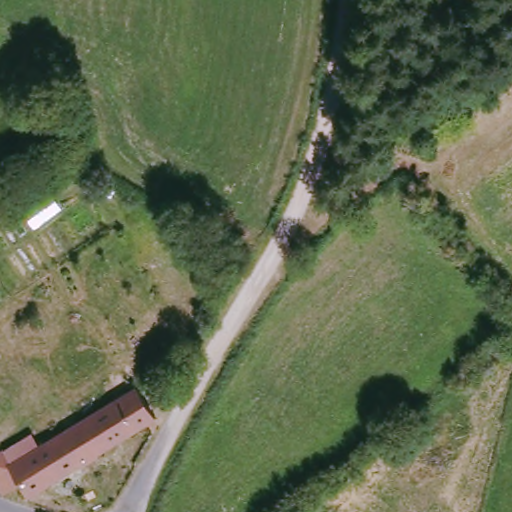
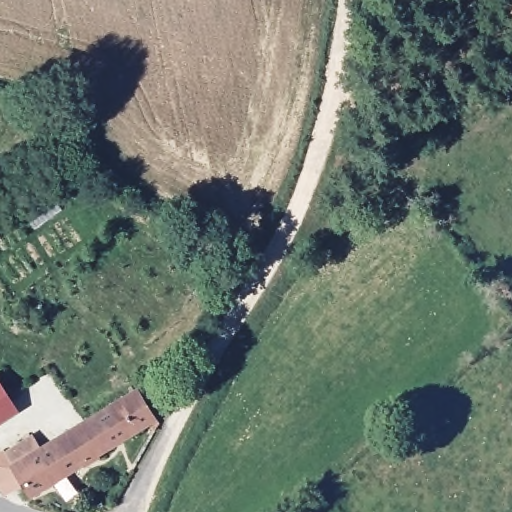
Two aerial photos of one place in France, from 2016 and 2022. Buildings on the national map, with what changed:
new [(19,410),(0,422),(0,382),(19,410)]
unchanged [(157,416),(32,497),(24,486),(5,494),(0,485),(0,457),(4,454),(13,468),(136,386),(157,416)]

